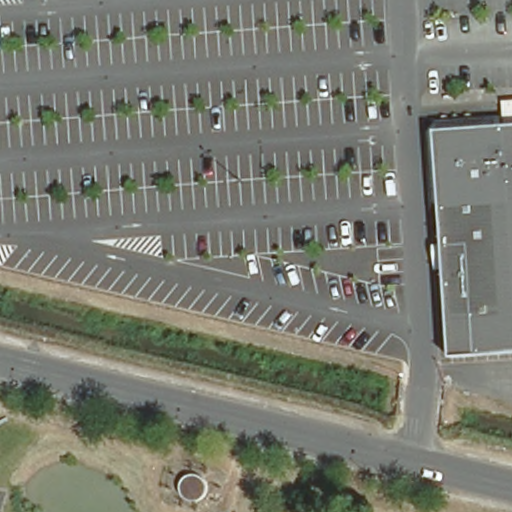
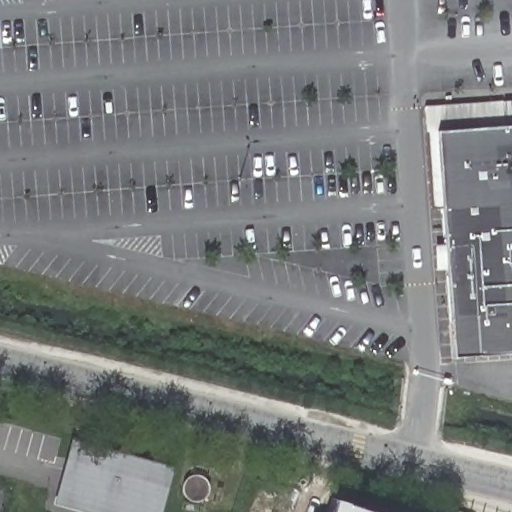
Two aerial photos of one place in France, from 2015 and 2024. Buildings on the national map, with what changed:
unchanged [(512,126),(512,352),(453,356),(437,131),(512,126)]
new [(173,465),(167,488),(161,512),(86,512),(53,503),(65,460),(71,437),(173,465)]
unchanged [(189,476),(190,476),(191,476),(192,475),(193,475),(194,475),(195,475),(196,475),(197,475),(198,476),(199,476),(200,476),(201,477),(202,478),(203,478),(204,479),(204,480),(205,480),(206,481),(206,482),(207,483),(207,484),(207,485),(208,485),(208,486),(208,487),(208,488),(208,489),(208,490),(208,491),(208,492),(208,493),(207,494),(207,495),(207,496),(206,497),(205,498),(204,499),(203,500),(202,501),(201,501),(200,502),(199,502),(198,503),(197,503),(196,503),(195,503),(194,503),(193,503),(192,503),(191,503),(190,502),(189,502),(188,501),(187,501),(186,500),(185,499),(184,499),(184,498),(183,497),(183,496),(182,495),(181,494),(181,493),(181,492),(181,491),(181,490),(181,489),(181,488),(181,487),(181,486),(181,485),(181,484),(182,483),(182,482),(183,482),(183,481),(184,480),(185,479),(186,478),(187,478),(188,477),(189,476)]
new [(376,512),(325,512),(331,498),(376,512)]

